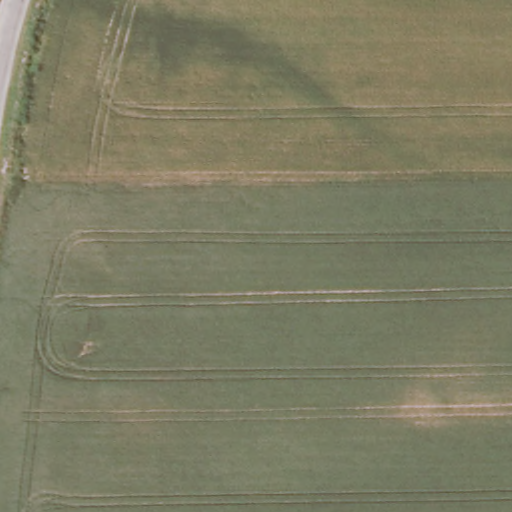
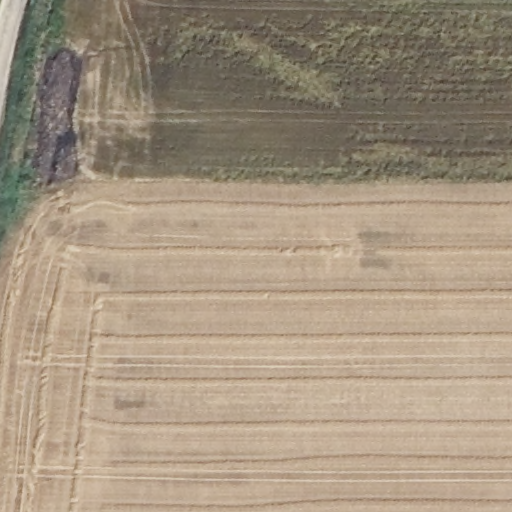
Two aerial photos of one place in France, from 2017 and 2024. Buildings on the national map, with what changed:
[]

